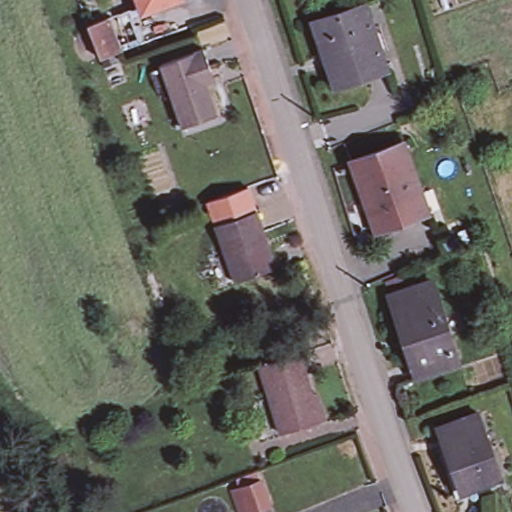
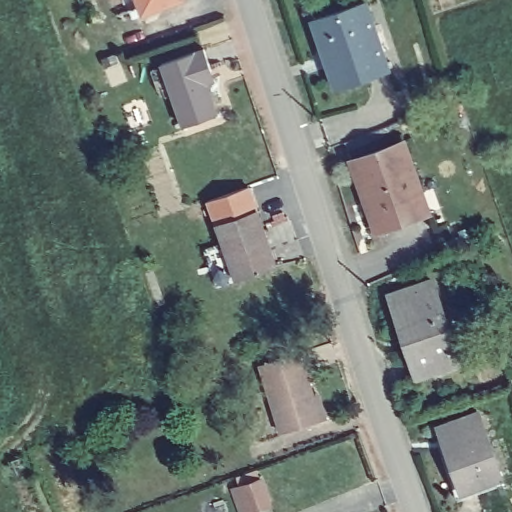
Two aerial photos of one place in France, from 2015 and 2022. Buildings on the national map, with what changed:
unchanged [(138,0),(184,0),(143,15),(138,0)]
unchanged [(327,63),(332,62),(318,17),(368,2),(389,68),(335,85),(327,63)]
unchanged [(111,19),(123,52),(101,61),(86,28),(111,19)]
unchanged [(190,128),(166,65),(210,49),(217,67),(221,79),(212,81),(224,115),(190,128)]
unchanged [(402,140),(428,209),(377,228),(351,159),(402,140)]
unchanged [(220,224),(262,209),(282,261),(240,277),(220,224)]
unchanged [(430,280),(459,362),(421,375),(407,334),(402,336),(388,295),(430,280)]
unchanged [(327,420),(323,422),(286,433),(261,366),(307,351),(312,366),(306,370),(315,396),(319,394),(327,420)]
unchanged [(477,410),(501,475),(462,488),(439,423),(477,410)]
unchanged [(236,487),(244,485),(266,478),(273,500),(252,507),(244,510),(236,487)]

